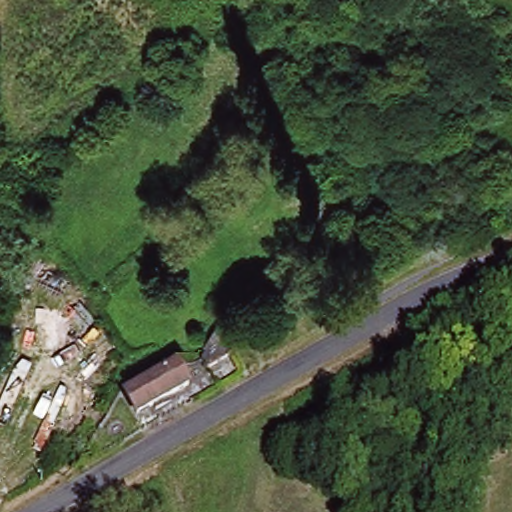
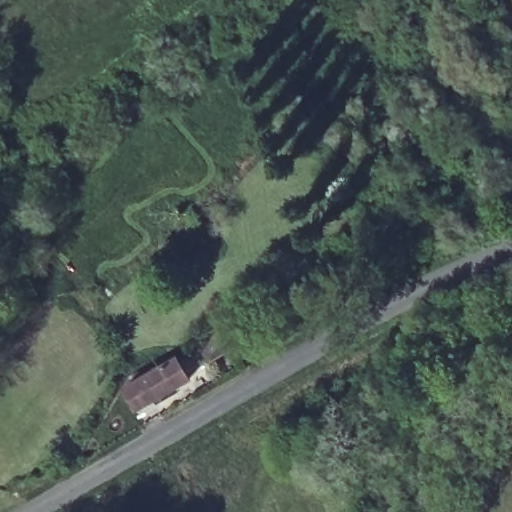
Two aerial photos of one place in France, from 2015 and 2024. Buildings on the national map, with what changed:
unchanged [(221,363),(201,381),(195,372),(216,353),(221,363)]
unchanged [(179,364),(191,385),(178,392),(181,397),(162,407),(160,402),(147,410),(135,389),(179,364)]

